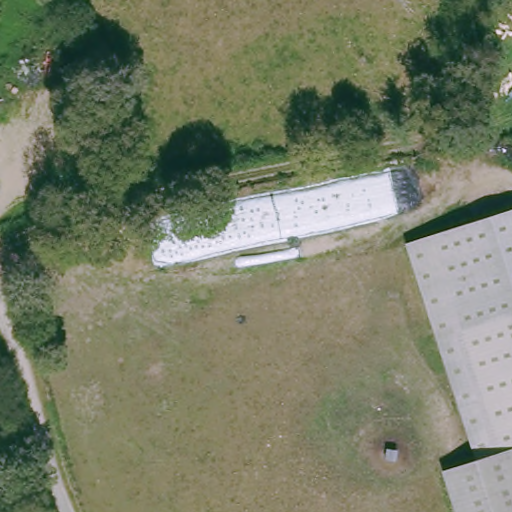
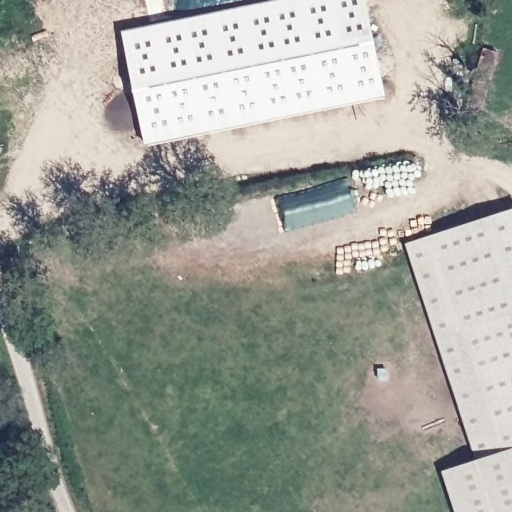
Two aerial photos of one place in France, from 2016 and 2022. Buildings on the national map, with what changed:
new [(145,142),(125,30),(273,0),(367,0),(385,96),(145,142)]
unchanged [(512,451),(512,512),(461,512),(447,469),(482,457),(409,241),(512,207),(512,447),(511,447),(512,451)]

